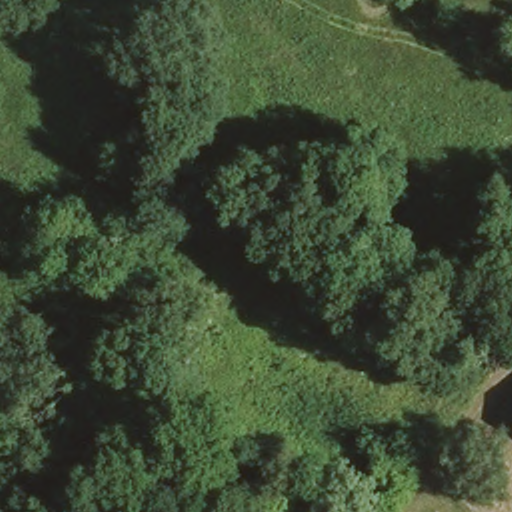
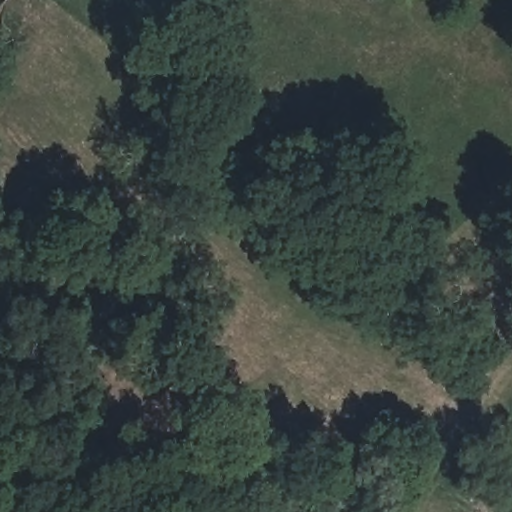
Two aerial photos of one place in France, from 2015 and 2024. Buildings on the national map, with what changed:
unchanged [(512,417),(512,427),(507,423),(512,417)]

